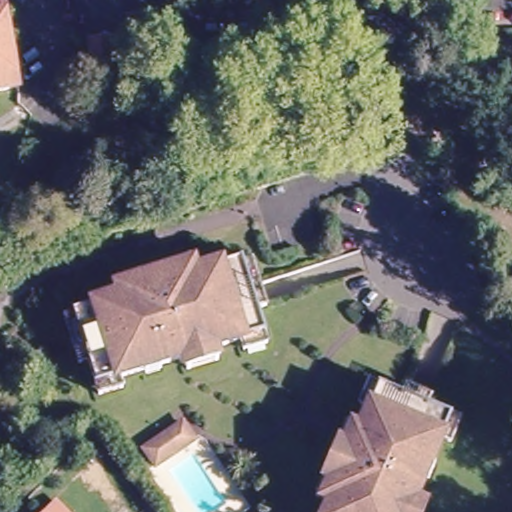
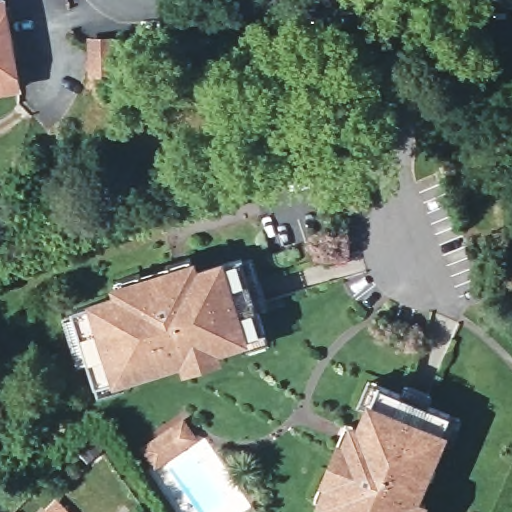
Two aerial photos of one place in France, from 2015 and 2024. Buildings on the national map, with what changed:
unchanged [(8,0),(24,87),(0,91),(0,1),(8,0)]
unchanged [(361,36),(365,56),(353,59),(348,39),(361,36)]
unchanged [(365,56),(369,75),(359,76),(356,59),(365,56)]
unchanged [(99,395),(98,393),(96,385),(88,361),(79,364),(64,318),(74,315),(73,311),(120,297),(115,282),(139,274),(141,281),(168,273),(167,271),(166,266),(190,258),(194,271),(195,274),(202,271),(242,259),(243,262),(252,260),(256,271),(259,281),(266,306),(257,309),(265,333),(268,343),(254,347),(243,351),(240,340),(214,349),(217,359),(186,369),(182,358),(159,366),(158,362),(145,366),(146,369),(121,377),(124,387),(105,393),(99,395)]
unchanged [(331,498),(316,492),(325,469),(332,471),(343,446),(336,443),(345,420),(360,426),(361,424),(369,404),(359,400),(369,377),(379,381),(402,390),(405,381),(431,391),(427,401),(450,410),(440,436),(430,458),(425,456),(419,469),(425,472),(415,497),(427,502),(423,512),(325,512),(331,498)]
unchanged [(183,423),(194,439),(155,468),(144,451),(183,423)]

